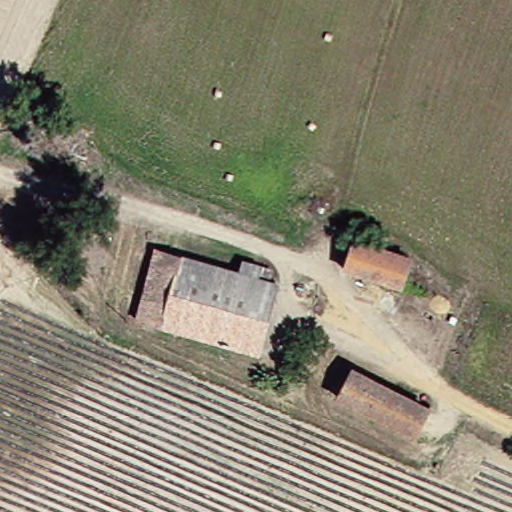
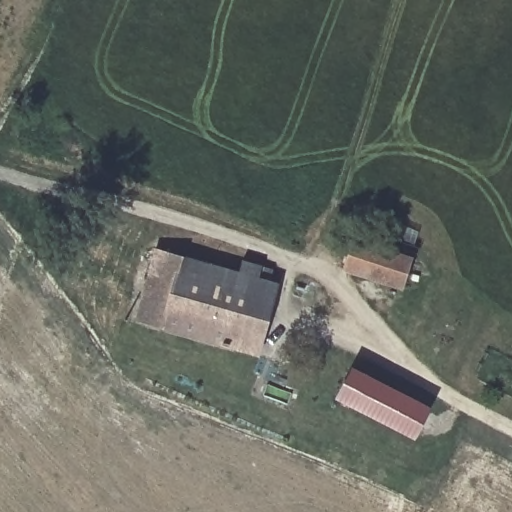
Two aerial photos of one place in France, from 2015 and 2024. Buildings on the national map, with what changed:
unchanged [(407,284),(349,265),(358,239),(416,257),(407,284)]
unchanged [(155,268),(161,244),(183,250),(261,270),(242,340),(143,312),(155,268)]
unchanged [(242,340),(261,270),(281,275),(262,345),(242,340)]
unchanged [(420,431),(344,391),(357,366),(433,405),(420,431)]

